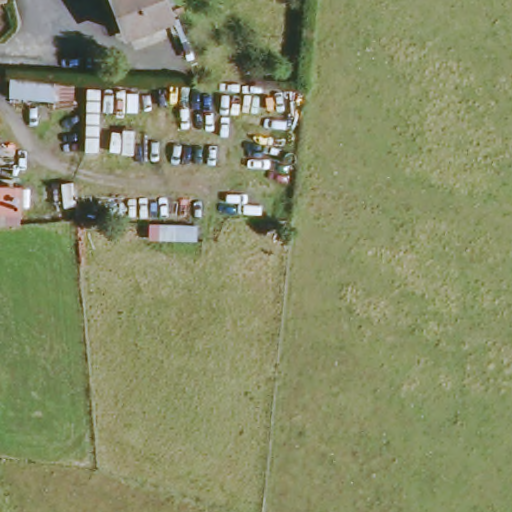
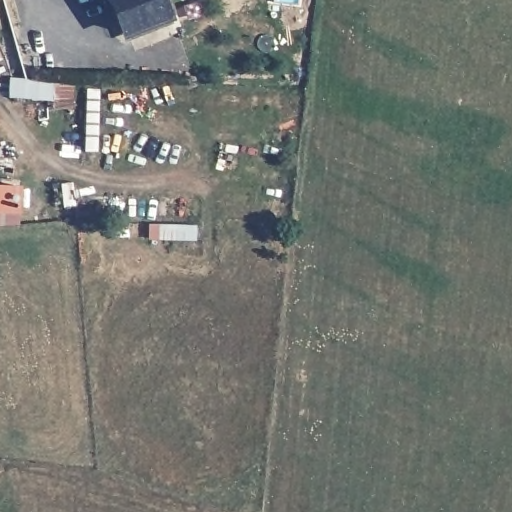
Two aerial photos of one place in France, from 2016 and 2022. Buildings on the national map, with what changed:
unchanged [(125,37),(110,0),(167,0),(173,18),(125,37)]
unchanged [(73,112),(56,111),(56,104),(11,103),(11,86),(75,86),(73,112)]
unchanged [(20,194),(20,215),(0,215),(0,192),(20,194)]

